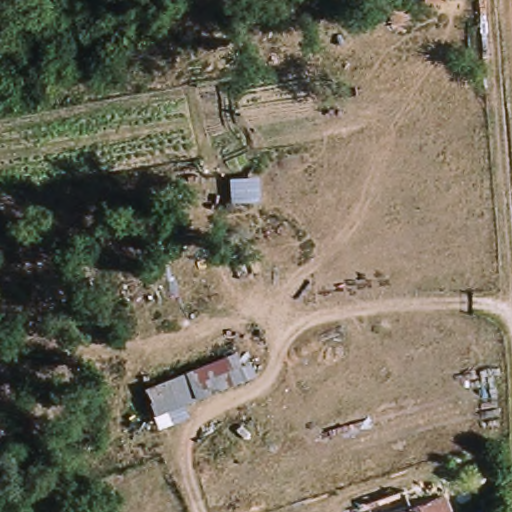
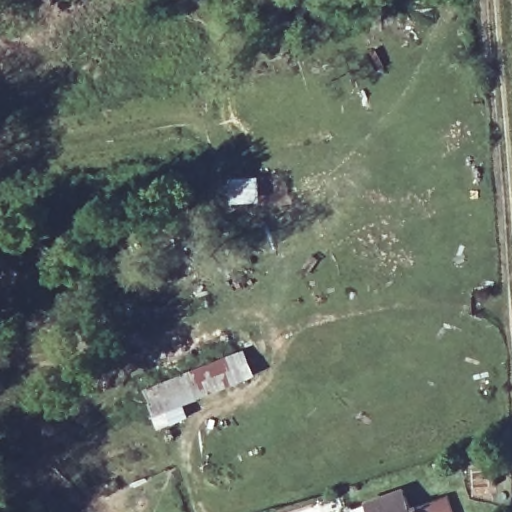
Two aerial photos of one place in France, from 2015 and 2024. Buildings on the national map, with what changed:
unchanged [(209,396),(198,371),(240,352),(251,378),(209,396)]
unchanged [(209,396),(167,414),(156,388),(198,371),(209,396)]
unchanged [(447,498),(452,512),(409,512),(447,498)]

